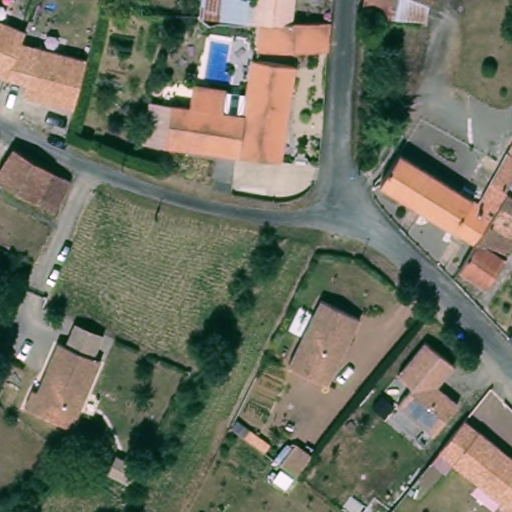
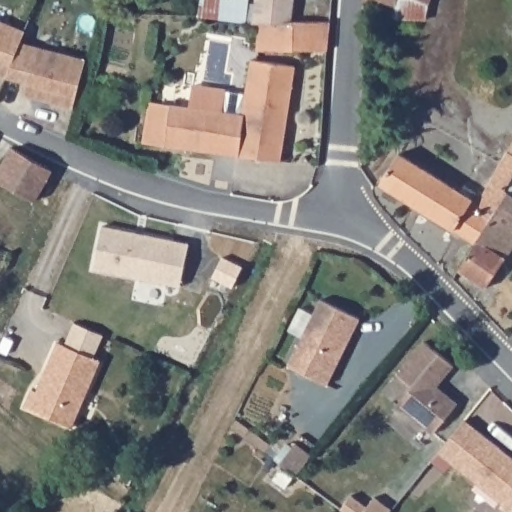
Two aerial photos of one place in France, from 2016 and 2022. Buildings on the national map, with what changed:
unchanged [(251,0),(249,27),(243,26),(203,24),(205,0),(251,0)]
unchanged [(255,15),(257,0),(296,0),(294,20),(288,19),(262,16),(255,15)]
unchanged [(361,6),(361,0),(426,0),(425,10),(396,8),(361,6)]
unchanged [(25,39),(88,56),(76,109),(26,96),(30,81),(8,74),(0,72),(0,16),(26,27),(25,39)]
unchanged [(259,49),(260,28),(262,16),(288,19),(294,20),(332,21),(331,32),(331,51),(259,49)]
unchanged [(152,102),(246,115),(255,59),(258,59),(298,66),(285,162),(146,142),(152,102)]
unchanged [(0,129),(1,130),(0,132),(0,129)]
unchanged [(0,183),(0,181),(19,152),(69,183),(52,218),(0,183)]
unchanged [(500,216),(482,244),(385,184),(404,154),(465,192),(469,186),(487,196),(512,155),(512,190),(510,193),(500,216)]
unchanged [(491,288),(465,270),(482,244),(500,216),(510,193),(512,195),(512,254),(491,288)]
new [(181,286),(94,269),(103,225),(189,243),(181,286)]
unchanged [(328,379),(289,360),(321,295),(360,313),(343,348),(338,357),(328,379)]
unchanged [(464,401),(440,431),(403,402),(418,384),(403,371),(430,338),(460,362),(443,383),(451,390),(464,401)]
unchanged [(511,340),(512,339),(512,342),(511,340)]
unchanged [(46,370),(58,341),(101,359),(73,426),(25,406),(33,389),(37,391),(46,370)]
unchanged [(470,417),(507,444),(512,449),(512,503),(445,449),(470,417)]

